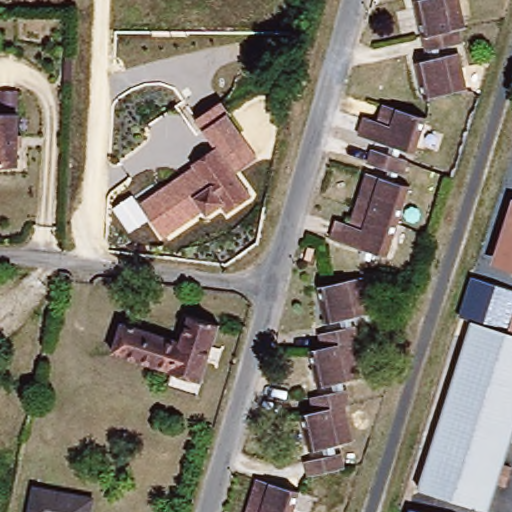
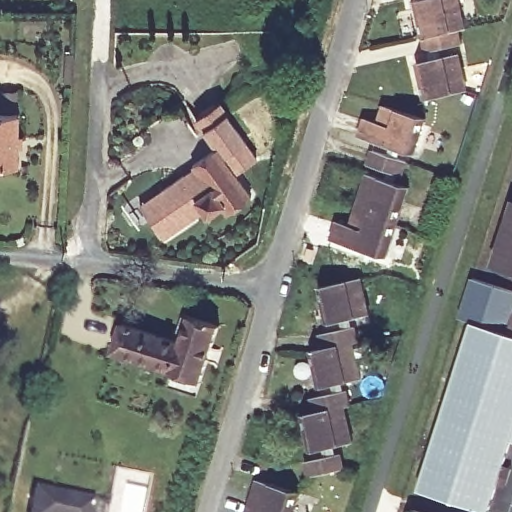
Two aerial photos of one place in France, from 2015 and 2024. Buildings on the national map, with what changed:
unchanged [(430,37),(430,36),(427,36),(420,0),(465,0),(470,28),(463,30),(466,44),(432,51),(430,37)]
unchanged [(469,75),(472,91),(429,99),(422,62),(465,54),(469,75)]
unchanged [(222,102),(250,144),(225,159),(254,196),(228,214),(222,207),(209,217),(204,212),(164,237),(153,220),(133,233),(117,207),(157,182),(162,189),(215,149),(198,122),(222,102)]
unchanged [(380,127),(385,110),(427,122),(415,158),(360,141),(366,122),(380,127)]
unchanged [(17,169),(0,168),(0,115),(17,115),(17,169)]
unchanged [(374,154),(407,165),(402,179),(370,168),(374,154)]
unchanged [(357,215),(369,177),(410,191),(398,228),(357,215)]
unchanged [(493,272),(512,212),(512,278),(493,272)]
unchanged [(387,262),(375,258),(332,244),(338,226),(352,230),(357,215),(398,228),(387,262)]
unchanged [(367,278),(375,315),(332,323),(325,287),(332,285),(367,278)]
unchanged [(114,357),(123,327),(182,347),(190,320),(220,330),(202,387),(172,377),(172,376),(114,357)]
unchanged [(506,487),(498,484),(489,512),(420,490),(473,322),(509,333),(512,322),(512,441),(504,466),(512,468),(506,487)]
unchanged [(324,387),(315,351),(329,347),(327,333),(361,327),(364,341),(359,342),(366,378),(324,387)]
unchanged [(315,452),(307,416),(307,415),(320,412),(318,398),(353,391),(355,406),(351,407),(358,442),(315,452)]
unchanged [(349,468),(315,476),(312,461),(346,454),(349,468)]
unchanged [(263,484),(305,497),(300,512),(254,512),(263,484)]
unchanged [(94,503),(92,512),(31,512),(35,492),(94,503)]
unchanged [(423,512),(412,512),(413,509),(423,512)]

